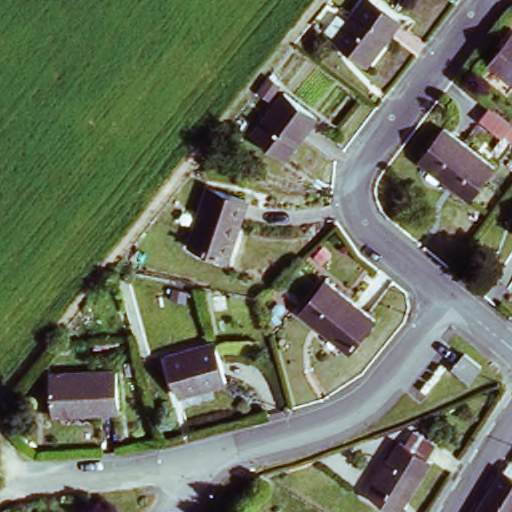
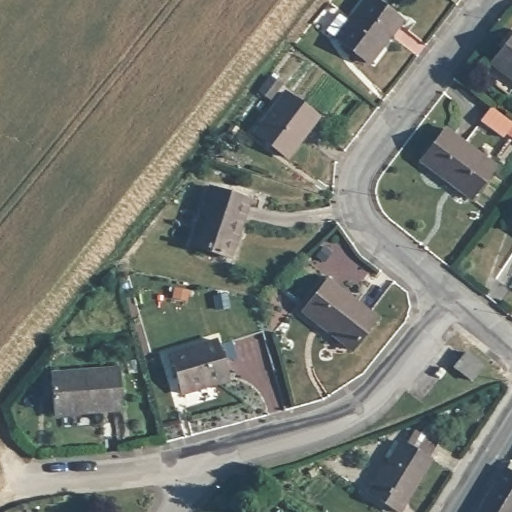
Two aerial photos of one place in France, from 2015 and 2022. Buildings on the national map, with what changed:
unchanged [(362,0),(368,0),(392,21),(360,61),(331,36),(362,0)]
unchanged [(492,64),(512,39),(512,80),(492,64)]
unchanged [(316,123),(287,159),(250,128),(280,91),(316,123)]
unchanged [(479,127),(491,111),(512,127),(512,129),(501,144),(479,127)]
unchanged [(456,197),(420,166),(443,138),(480,169),(456,197)]
unchanged [(187,245),(205,187),(242,199),(224,258),(187,245)]
unchanged [(325,272),(375,309),(347,348),(297,310),(325,272)]
unchanged [(170,356),(218,347),(223,382),(175,392),(170,356)]
unchanged [(45,375),(111,364),(116,398),(50,409),(45,375)]
unchanged [(367,486),(390,453),(398,439),(427,457),(418,471),(396,504),(367,486)]
unchanged [(500,474),(512,484),(512,508),(509,512),(475,512),(500,474)]
unchanged [(512,508),(512,512),(509,512),(512,508)]

